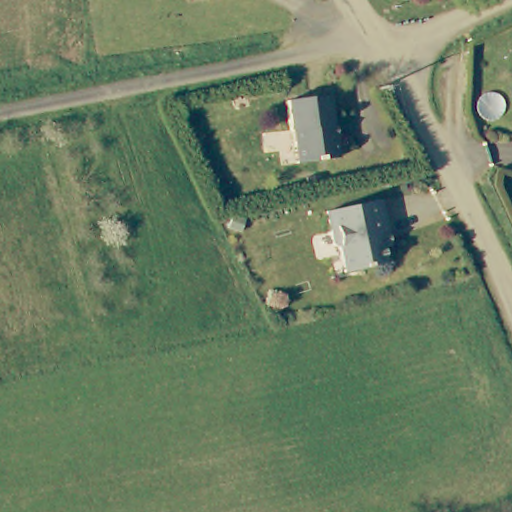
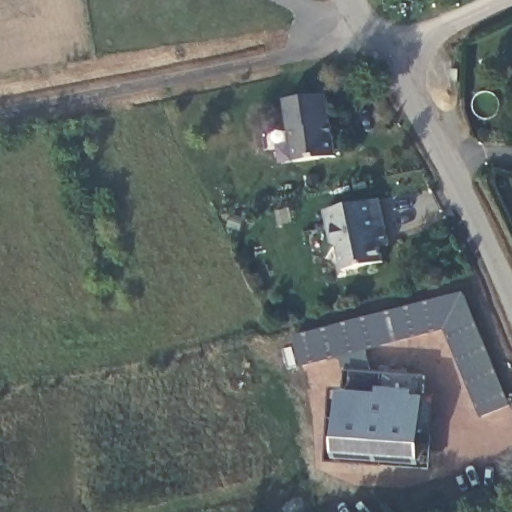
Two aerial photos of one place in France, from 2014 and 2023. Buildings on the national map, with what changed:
unchanged [(338,135),(341,135),(341,159),(300,160),(299,131),(295,131),(294,99),(337,98),(338,135)]
unchanged [(377,248),(381,260),(347,266),(342,251),(339,246),(334,243),(327,207),(376,198),(385,228),(390,244),(377,248)]
new [(343,391),(345,369),(342,357),(301,367),(293,336),(464,291),(512,406),(481,419),(444,330),(365,350),(369,370),(425,375),(422,399),(427,399),(424,468),(337,464),(343,391)]

